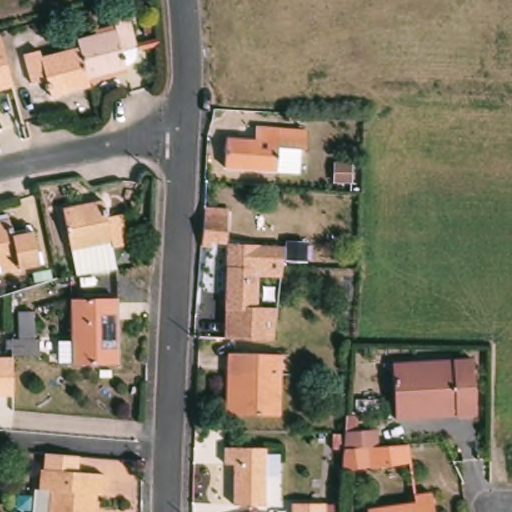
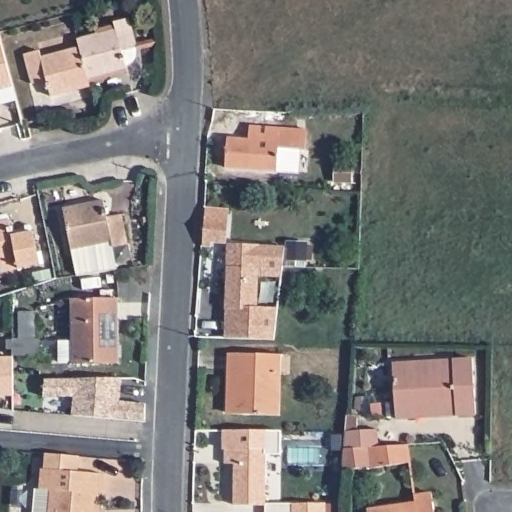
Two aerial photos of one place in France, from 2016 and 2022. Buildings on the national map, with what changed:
unchanged [(80,49),(78,41),(116,31),(114,24),(131,20),(137,49),(135,59),(132,63),(129,66),(125,68),(126,70),(89,81),(80,49)]
unchanged [(0,91),(0,32),(1,31),(13,87),(0,91)]
unchanged [(91,88),(52,98),(47,81),(32,85),(24,56),(40,52),(42,59),(80,49),(89,81),(91,88)]
unchanged [(277,172),(226,169),(227,138),(262,140),(262,128),(280,129),(277,172)]
unchanged [(337,183),(338,166),(352,167),(351,184),(337,183)]
unchanged [(130,240),(125,246),(117,248),(118,257),(78,263),(72,237),(63,196),(104,187),(107,205),(122,202),(128,229),(114,233),(128,230),(130,240)]
unchanged [(215,243),(215,248),(207,248),(210,221),(210,209),(232,211),(231,222),(230,245),(215,243)]
unchanged [(5,266),(0,267),(0,223),(14,220),(17,239),(34,236),(39,267),(7,274),(5,266)]
unchanged [(266,277),(267,252),(268,237),(287,238),(286,253),(284,278),(266,277)]
unchanged [(292,245),(311,246),(310,262),(291,261),(292,245)]
unchanged [(231,268),(232,253),(260,254),(260,270),(264,270),(262,311),(282,312),(280,341),(227,339),(231,268)]
unchanged [(59,339),(72,340),(71,302),(117,301),(119,364),(73,365),(73,364),(59,364),(59,339)]
unchanged [(19,341),(19,314),(36,314),(36,341),(41,341),(40,357),(12,357),(12,341),(19,341)]
unchanged [(232,376),(228,376),(228,356),(275,358),(283,358),(282,377),(280,419),(231,418),(232,376)]
unchanged [(13,357),(12,396),(0,396),(0,357),(13,357)]
unchanged [(455,367),(475,366),(477,421),(457,422),(457,416),(417,418),(417,423),(395,424),(394,369),(416,368),(455,367)]
new [(121,380),(121,403),(147,406),(147,423),(74,416),(76,398),(45,398),(45,380),(121,380)]
unchanged [(372,469),(372,468),(346,470),(346,451),(347,436),(347,433),(378,433),(377,449),(392,448),(410,446),(411,466),(372,469)]
unchanged [(237,509),(236,468),(226,468),(226,452),(267,451),(267,509),(237,509)]
unchanged [(40,490),(43,491),(45,471),(49,471),(51,456),(75,458),(83,459),(82,475),(107,477),(105,498),(95,497),(93,512),(38,512),(40,490)]
unchanged [(415,507),(413,498),(433,496),(436,512),(378,512),(415,507)]
unchanged [(339,512),(290,512),(290,507),(339,506),(339,512)]

